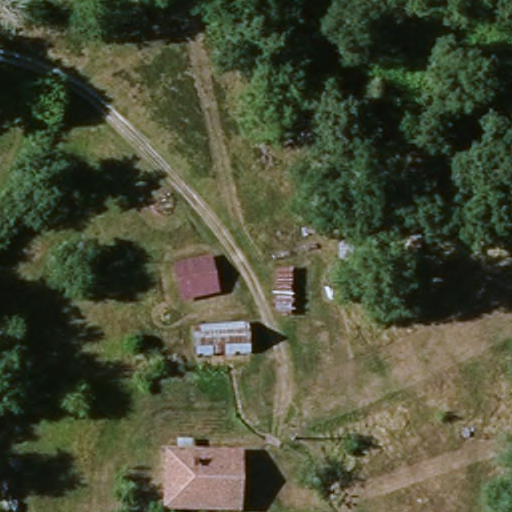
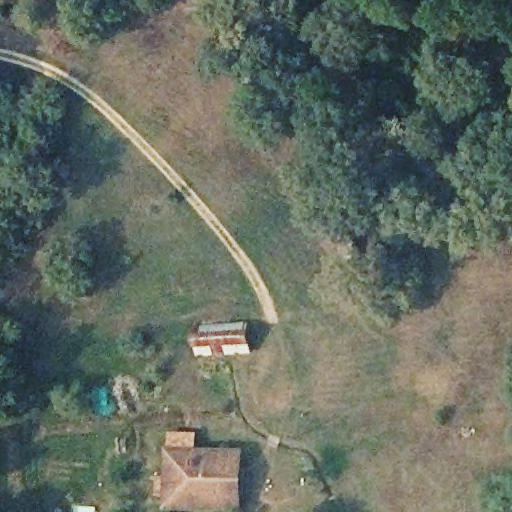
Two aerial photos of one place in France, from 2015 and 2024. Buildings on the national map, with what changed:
demolished [(211,259),(217,297),(178,305),(172,266),(211,259)]
unchanged [(244,358),(191,343),(194,317),(247,330),(244,358)]
unchanged [(218,512),(164,499),(177,441),(243,456),(227,512),(218,512)]

